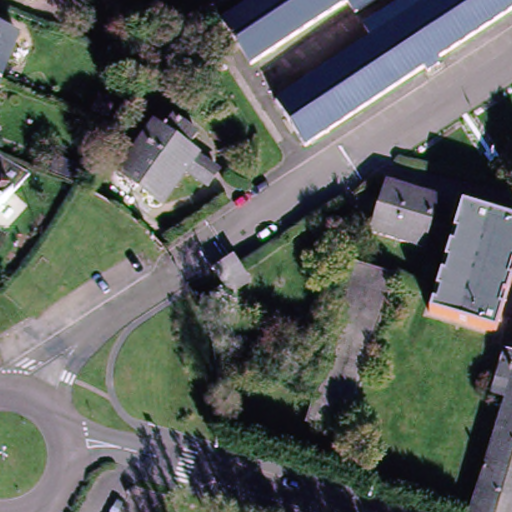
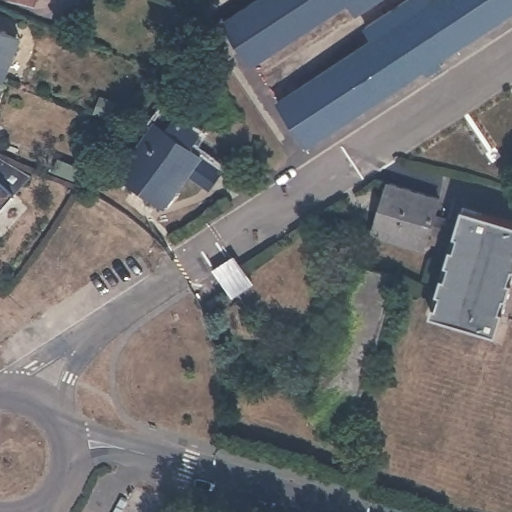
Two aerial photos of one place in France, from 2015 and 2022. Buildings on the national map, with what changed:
unchanged [(37,2),(34,0),(38,0),(37,2)]
unchanged [(227,25),(263,0),(384,0),(359,17),(351,5),(257,69),(227,25)]
unchanged [(340,139),(335,132),(312,148),(280,103),(374,40),(366,28),(407,0),(512,0),(512,11),(441,60),(444,66),(433,73),(429,67),(343,127),(347,135),(340,139)]
unchanged [(0,76),(0,25),(23,36),(4,78),(0,76)]
unchanged [(4,78),(10,81),(0,104),(0,76),(4,78)]
unchanged [(120,178),(158,128),(169,136),(175,127),(196,143),(190,152),(200,159),(198,162),(217,176),(206,189),(188,176),(162,210),(120,178)]
unchanged [(77,182),(50,171),(55,158),(82,169),(77,182)]
unchanged [(13,167),(29,182),(14,199),(0,213),(0,161),(13,167)]
unchanged [(429,231),(423,248),(372,232),(387,184),(438,200),(433,216),(444,220),(440,234),(429,231)]
unchanged [(502,217),(509,219),(512,220),(512,268),(493,332),(428,312),(441,268),(460,205),(502,217)]
unchanged [(218,279),(212,272),(201,258),(216,245),(227,259),(234,267),(218,279)]
unchanged [(353,286),(340,282),(345,265),(359,269),(360,264),(400,276),(351,435),(312,423),(353,286)]
demolished [(511,390),(498,386),(510,345),(512,345),(512,512),(473,512),(507,401),(511,390)]

